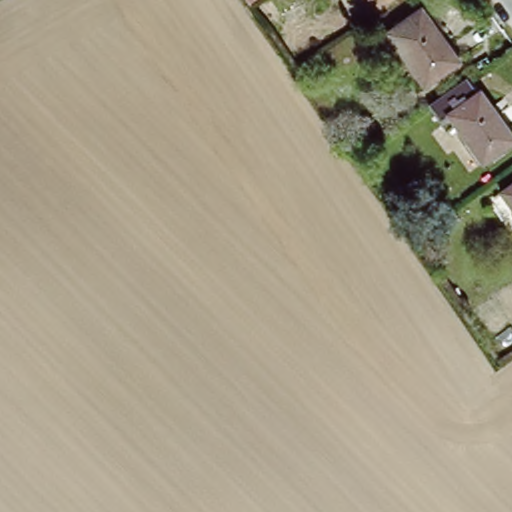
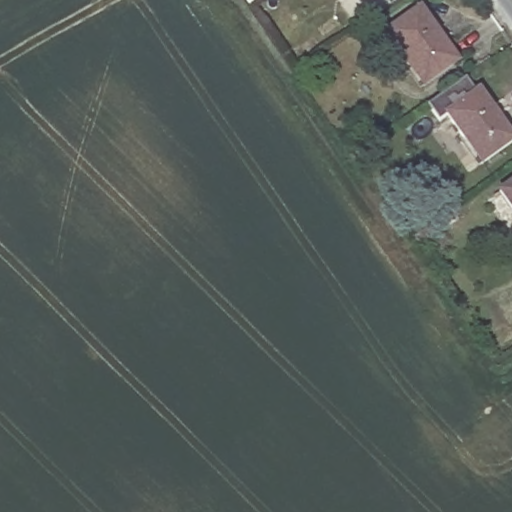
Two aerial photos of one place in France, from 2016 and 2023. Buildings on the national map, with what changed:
unchanged [(421,4),(459,58),(424,83),(385,28),(421,4)]
unchanged [(492,94),(512,123),(512,151),(491,165),(459,117),(450,122),(437,104),(476,79),(490,96),(492,94)]
unchanged [(512,205),(500,188),(512,180),(512,205)]

